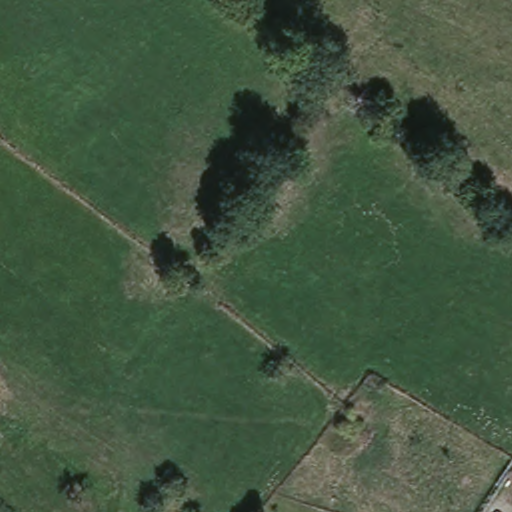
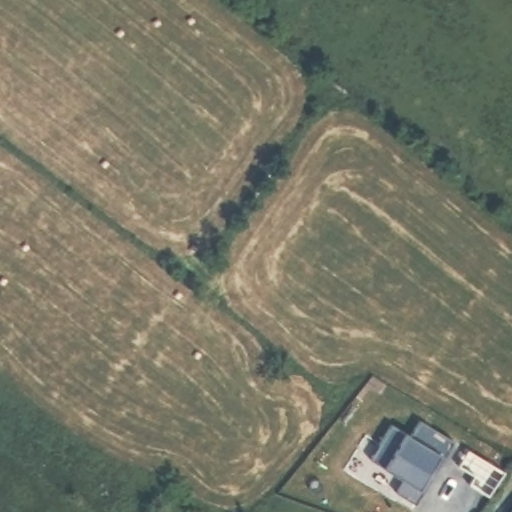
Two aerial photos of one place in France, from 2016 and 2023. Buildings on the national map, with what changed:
demolished [(367,450),(349,435),(362,417),(381,431),(367,450)]
new [(416,506),(397,494),(405,481),(370,462),(391,426),(410,437),(420,421),(453,441),(444,458),(435,475),(416,506)]
unchanged [(511,512),(512,510),(512,512),(511,512)]

